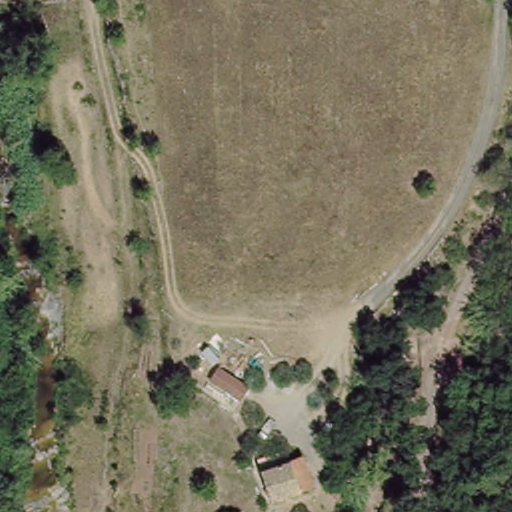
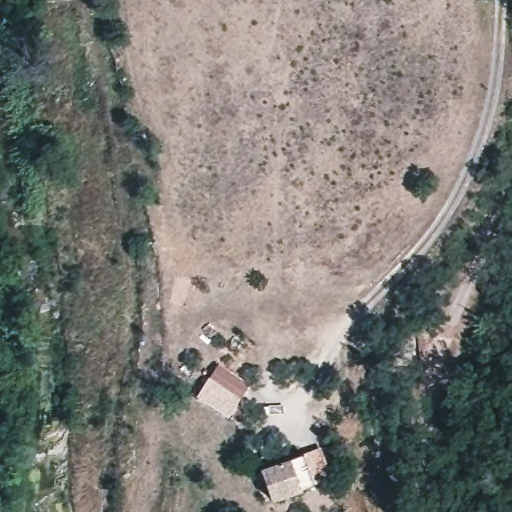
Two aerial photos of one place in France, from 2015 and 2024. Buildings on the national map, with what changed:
new [(218,364),(248,384),(226,415),(195,395),(218,364)]
unchanged [(295,458),(306,486),(299,490),(264,502),(253,471),(289,461),(295,458)]

